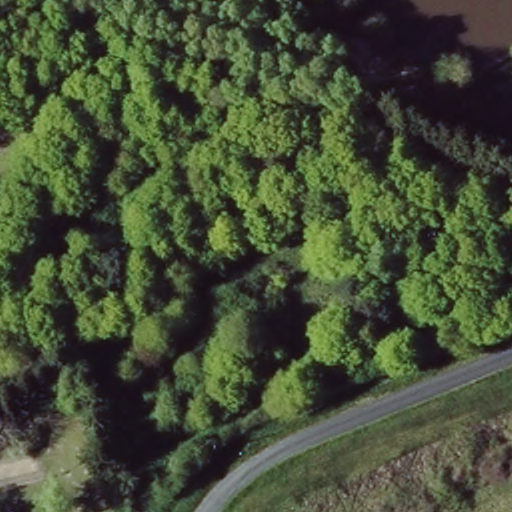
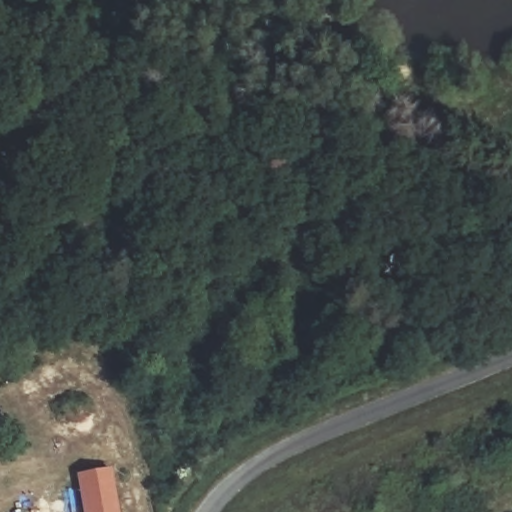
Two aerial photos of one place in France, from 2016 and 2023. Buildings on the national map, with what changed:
new [(116,462),(125,512),(87,512),(80,472),(116,462)]

